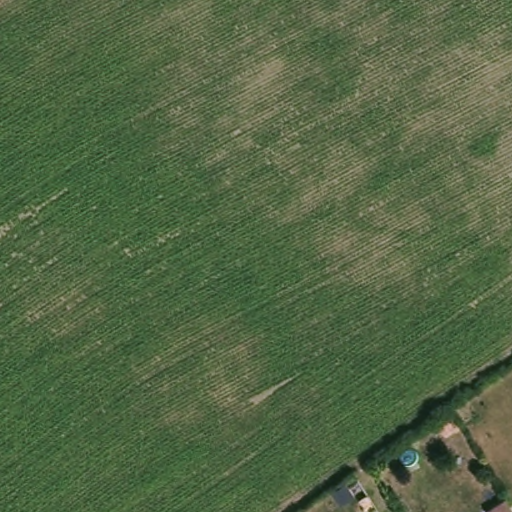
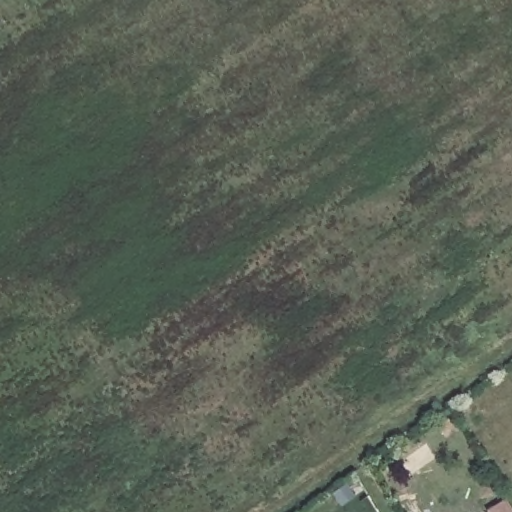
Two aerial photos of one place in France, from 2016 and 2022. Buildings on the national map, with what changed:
unchanged [(512,509),(512,512),(487,512),(486,511),(505,499),(512,509)]

